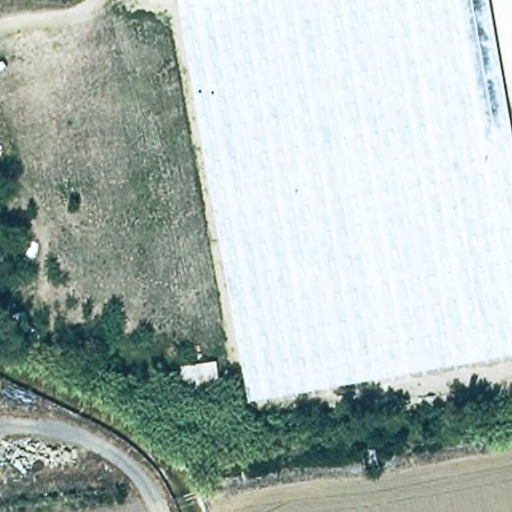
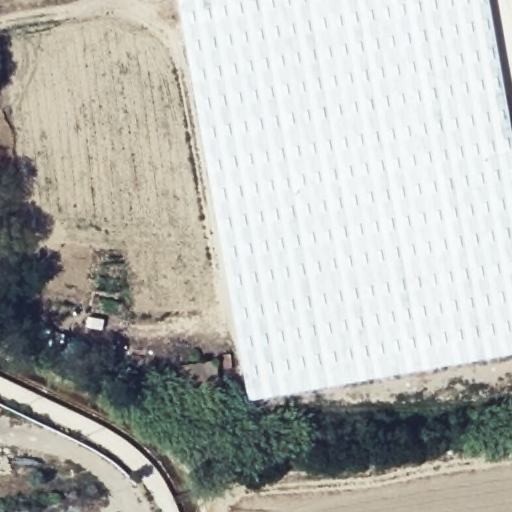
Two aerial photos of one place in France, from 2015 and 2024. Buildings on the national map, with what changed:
unchanged [(512,152),(512,356),(248,404),(176,0),(486,0),(511,152),(512,152)]
unchanged [(216,363),(221,383),(179,389),(176,369),(216,363)]

